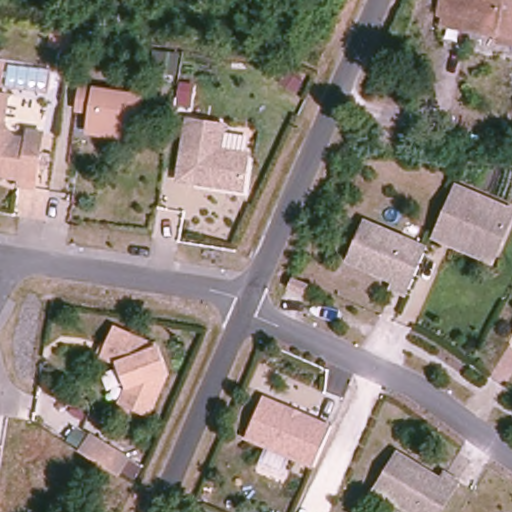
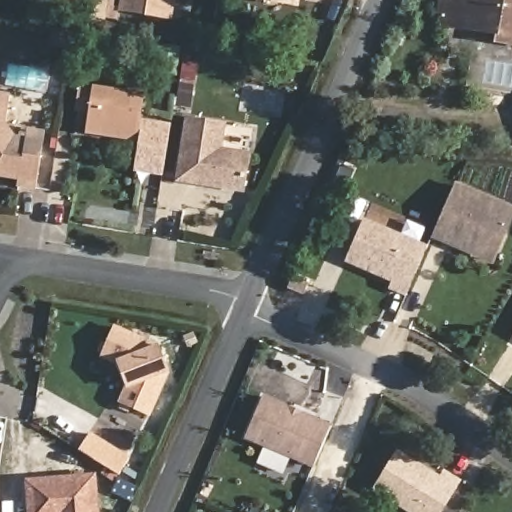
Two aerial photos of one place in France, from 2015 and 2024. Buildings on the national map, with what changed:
new [(171,17),(124,10),(125,0),(174,0),(171,17)]
new [(300,8),(251,0),(301,0),(300,8)]
unchanged [(471,39),(472,31),(451,27),(451,19),(439,15),(441,0),(512,0),(512,47),(471,39)]
unchanged [(89,114),(75,111),(79,85),(144,94),(133,142),(86,135),(89,114)]
unchanged [(173,180),(183,129),(185,118),(222,124),(220,136),(217,149),(246,154),(239,191),(207,185),(190,183),(173,180)]
unchanged [(38,146),(31,184),(15,182),(16,175),(0,172),(0,126),(11,134),(25,136),(26,128),(41,130),(38,146)]
unchanged [(440,237),(431,233),(454,183),(508,206),(493,243),(486,258),(440,237)]
unchanged [(404,292),(390,287),(392,277),(347,262),(362,220),(425,245),(404,292)]
unchanged [(313,277),(307,289),(286,280),(292,268),(313,277)]
unchanged [(153,338),(163,367),(144,412),(115,398),(123,383),(114,360),(101,356),(111,325),(153,338)]
unchanged [(246,438),(264,398),(291,408),(290,415),(301,420),(303,414),(330,427),(311,467),(246,438)]
unchanged [(76,455),(86,438),(125,462),(114,480),(76,455)]
unchanged [(436,470),(452,477),(432,512),(408,512),(366,488),(388,451),(433,477),(436,470)]
new [(26,512),(24,480),(96,473),(100,512),(26,512)]

